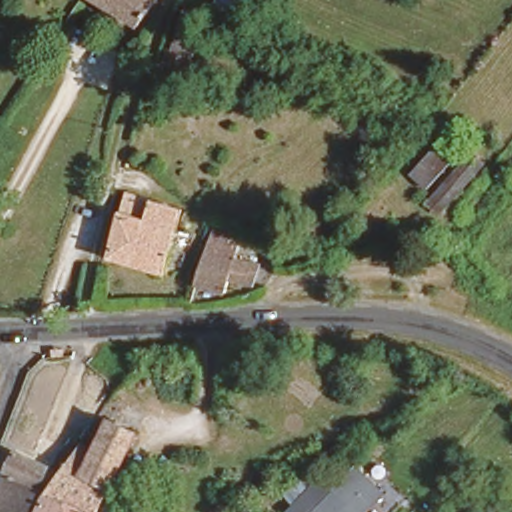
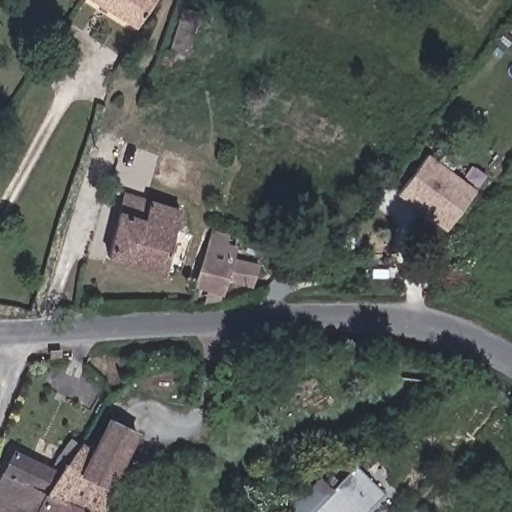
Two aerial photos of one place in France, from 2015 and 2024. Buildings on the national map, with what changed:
unchanged [(132,20),(102,0),(146,0),(132,20)]
demolished [(430,138),(448,154),(423,188),(402,171),(430,138)]
demolished [(466,144),(481,155),(445,202),(429,190),(466,144)]
new [(477,195),(447,233),(400,196),(428,158),(477,195)]
unchanged [(142,210),(147,193),(176,202),(163,263),(107,245),(119,201),(142,210)]
unchanged [(211,227),(219,229),(217,239),(237,243),(232,252),(256,257),(247,277),(226,273),(222,288),(191,277),(211,227)]
unchanged [(94,445),(110,412),(136,428),(94,512),(37,512),(62,467),(77,437),(94,445)]
unchanged [(9,512),(0,507),(0,481),(18,446),(62,467),(37,512),(9,512)]
unchanged [(380,485),(355,512),(290,512),(278,500),(340,448),(380,485)]
unchanged [(0,512),(0,507),(9,512),(0,512)]

